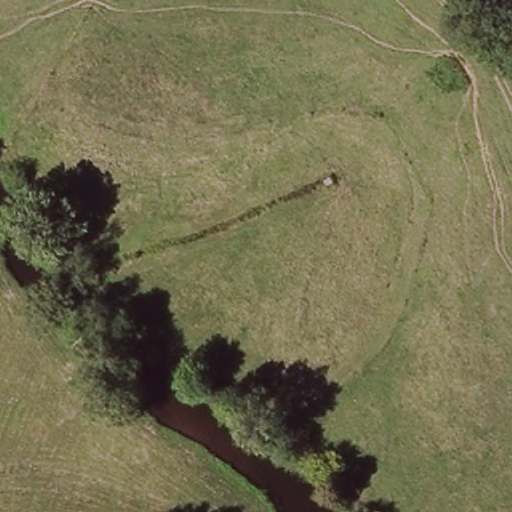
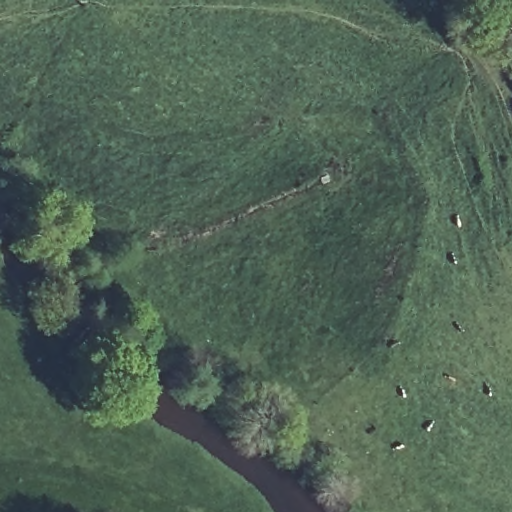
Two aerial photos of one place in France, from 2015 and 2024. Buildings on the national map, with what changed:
[]

